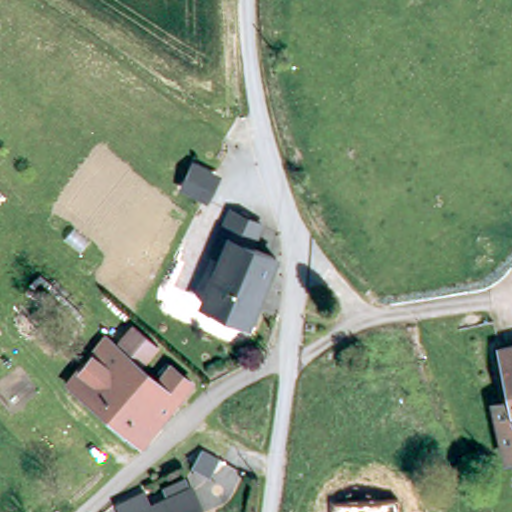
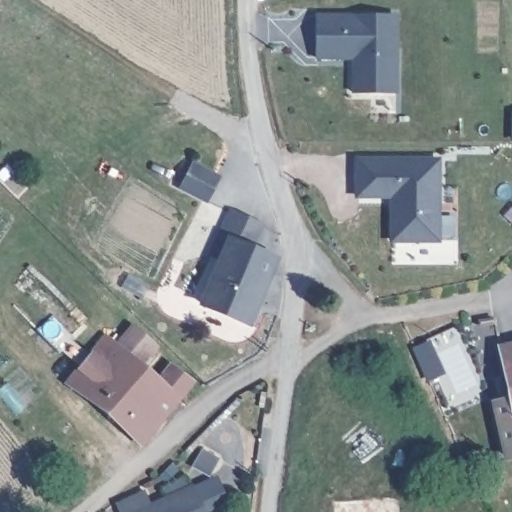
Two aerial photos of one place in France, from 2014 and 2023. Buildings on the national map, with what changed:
new [(398,14),(399,94),(352,94),(352,60),(317,60),(317,12),(398,14)]
new [(441,156),(442,243),(390,244),(390,200),(355,199),(355,156),(441,156)]
unchanged [(213,206),(208,204),(187,192),(197,170),(220,182),(224,185),(213,206)]
unchanged [(228,239),(220,258),(211,254),(219,235),(230,212),(261,226),(250,249),(228,239)]
unchanged [(250,249),(275,260),(247,325),(201,304),(220,258),(228,239),(250,249)]
unchanged [(190,387),(137,452),(129,446),(132,441),(70,390),(107,346),(112,350),(130,329),(155,350),(137,371),(157,388),(171,372),(190,387)]
unchanged [(497,345),(512,343),(512,431),(505,392),(497,345)]
unchanged [(495,460),(482,395),(505,392),(512,431),(512,457),(495,460)]
unchanged [(199,481),(209,506),(194,512),(123,512),(184,487),(199,481)]
new [(399,512),(336,512),(335,503),(398,500),(399,512)]

